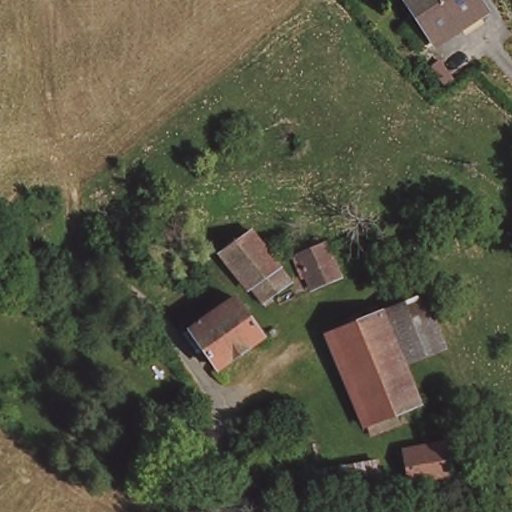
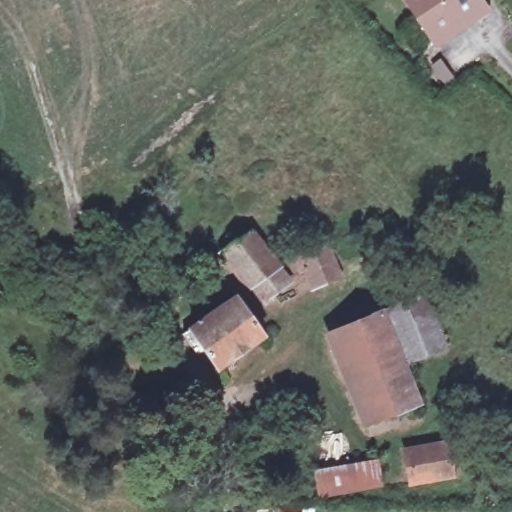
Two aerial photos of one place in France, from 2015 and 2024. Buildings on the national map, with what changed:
unchanged [(412,0),(481,0),(490,12),(482,17),(443,43),(412,0)]
unchanged [(260,297),(248,282),(244,286),(220,252),(249,230),(273,263),(285,278),(260,297)]
unchanged [(336,273),(308,285),(303,272),(299,273),(291,254),(322,244),(336,273)]
unchanged [(374,312),(413,296),(422,317),(434,345),(392,362),(374,312)]
unchanged [(232,297),(260,336),(215,366),(202,347),(187,328),(232,297)]
unchanged [(352,407),(322,332),(374,312),(392,362),(402,386),(352,407)]
unchanged [(410,407),(360,428),(352,407),(402,386),(410,407)]
unchanged [(417,482),(412,450),(450,443),(455,476),(417,482)]
new [(323,470),(378,460),(383,486),(328,496),(323,470)]

